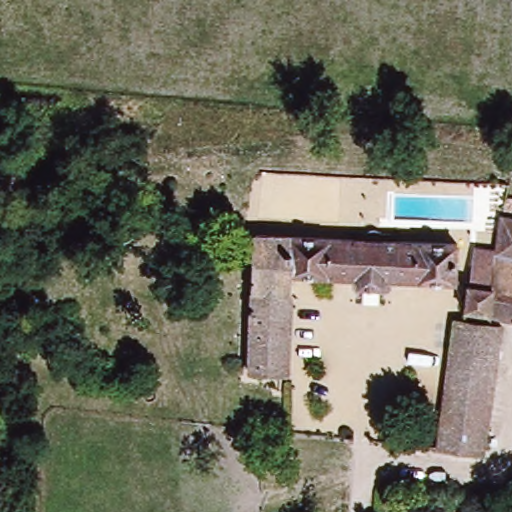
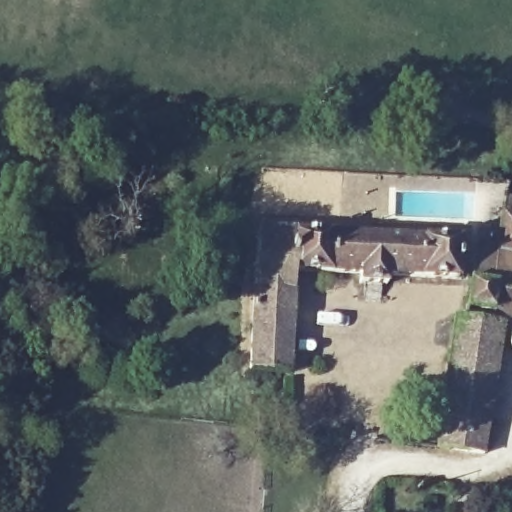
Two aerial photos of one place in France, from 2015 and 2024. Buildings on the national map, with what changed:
unchanged [(467,283),(488,285),(498,219),(512,221),(512,324),(480,319),(481,312),(462,309),(467,283)]
unchanged [(282,366),(250,364),(260,230),(454,240),(451,274),(381,272),(380,281),(355,280),(355,269),(290,269),(282,366)]
unchanged [(446,320),(481,327),(476,359),(440,356),(446,320)]
unchanged [(431,417),(440,356),(476,359),(481,327),(497,330),(481,423),(431,417)]
unchanged [(473,467),(457,464),(458,452),(429,448),(431,417),(481,423),(473,467)]

